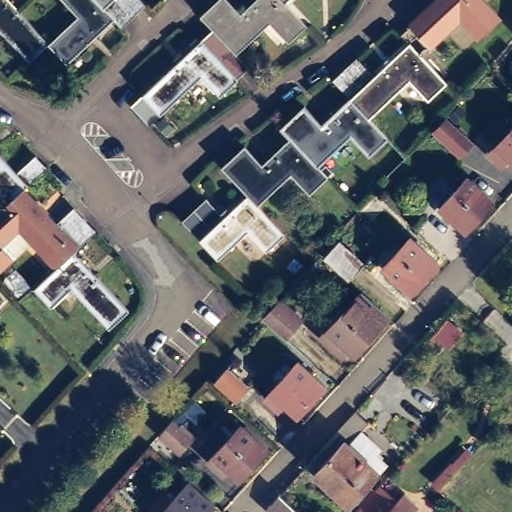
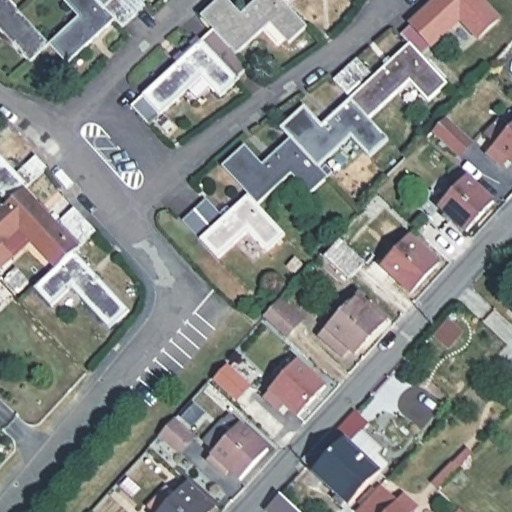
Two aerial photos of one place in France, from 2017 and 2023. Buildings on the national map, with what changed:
unchanged [(53,38),(33,56),(0,22),(0,0),(17,0),(26,10),(53,38)]
unchanged [(67,0),(102,0),(105,3),(109,0),(122,0),(133,12),(125,21),(118,13),(68,59),(53,43),(53,38),(78,13),(67,0)]
unchanged [(102,0),(109,0),(105,3),(102,0)]
unchanged [(141,0),(143,2),(133,12),(122,0),(141,0)]
unchanged [(203,36),(213,27),(201,15),(217,0),(228,0),(239,11),(251,0),(285,0),(285,1),(306,23),(289,40),(272,23),(239,53),(250,64),(238,75),(237,79),(221,93),(202,73),(151,121),(133,102),(143,92),(201,37),(203,36)]
unchanged [(285,0),(286,0),(285,1),(285,0)]
unchanged [(482,0),(497,16),(479,33),(459,13),(418,52),(408,42),(400,34),(436,0),(482,0)]
unchanged [(304,107),(321,124),(349,97),(333,79),(344,67),(355,57),(373,75),(408,42),(418,52),(446,81),(429,98),(409,78),(368,117),(387,137),(369,154),(349,134),(318,164),(290,135),(281,126),(303,106),(304,107)]
unchanged [(437,116),(460,137),(449,149),(426,128),(437,116)]
unchanged [(506,157),(498,165),(485,153),(494,143),(485,136),(497,123),(506,131),(512,124),(512,163),(506,157)]
unchanged [(246,144),(262,160),(290,135),(318,164),(328,175),(311,190),(293,172),(291,171),(258,202),(248,191),(223,165),(246,144)]
unchanged [(14,171),(33,155),(43,165),(19,187),(4,201),(0,196),(0,168),(5,162),(14,171)]
unchanged [(5,162),(0,168),(0,156),(6,162),(5,162)]
unchanged [(468,172),(494,196),(468,225),(442,201),(468,172)]
unchanged [(70,249),(53,265),(17,222),(0,238),(0,205),(4,201),(19,187),(52,224),(70,207),(78,216),(91,229),(75,245),(70,249)]
unchanged [(208,197),(223,214),(248,191),(258,202),(286,231),(267,249),(248,229),(218,255),(200,236),(183,218),(195,207),(206,197),(208,197)]
unchanged [(441,248),(434,255),(436,256),(408,286),(380,261),(408,231),(416,238),(423,232),(441,248)]
unchanged [(331,236),(354,257),(339,274),(316,253),(331,236)]
unchanged [(0,262),(0,244),(8,254),(0,262)]
unchanged [(53,265),(70,249),(124,308),(105,327),(68,285),(49,302),(33,285),(53,265)]
unchanged [(386,315),(351,352),(338,340),(333,344),(319,332),(351,298),(354,301),(361,293),(386,315)]
unchanged [(270,295),(289,312),(275,328),(256,311),(270,295)]
unchanged [(512,297),(512,312),(504,305),(512,297)]
unchanged [(300,355),(327,379),(301,408),(286,396),(282,400),(269,389),(274,384),(300,355)]
unchanged [(166,410),(184,426),(171,441),(153,426),(166,410)]
unchanged [(353,414),(366,427),(348,447),(367,463),(374,457),(383,467),(346,506),(304,468),(353,414)]
unchanged [(238,422),(264,447),(238,476),(223,462),(219,468),(206,457),(238,422)]
unchanged [(422,505),(433,490),(465,454),(469,457),(438,492),(458,511),(459,512),(430,512),(422,505)]
unchanged [(213,503),(205,512),(153,512),(144,503),(163,483),(173,492),(186,478),(213,503)]
unchanged [(378,486),(398,505),(404,498),(414,507),(409,512),(354,512),(378,486)]
unchanged [(307,512),(279,512),(266,500),(279,487),(307,512)]

